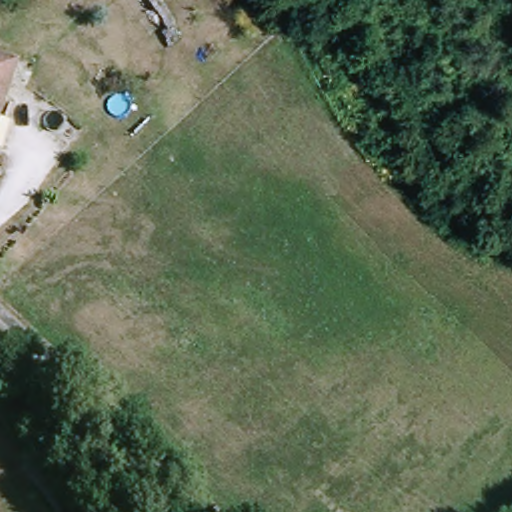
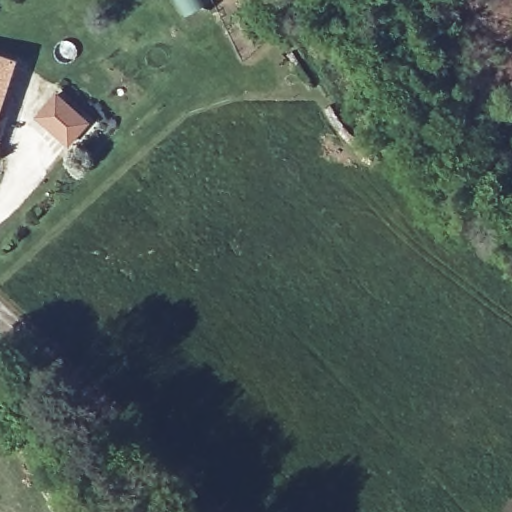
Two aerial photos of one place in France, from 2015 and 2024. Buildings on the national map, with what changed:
unchanged [(12,72),(0,108),(0,68),(12,72)]
new [(57,92),(90,122),(69,145),(36,117),(57,92)]
unchanged [(0,138),(0,129),(2,130),(0,138)]

